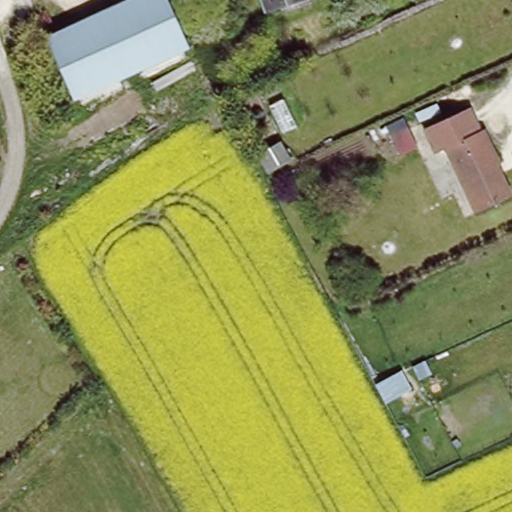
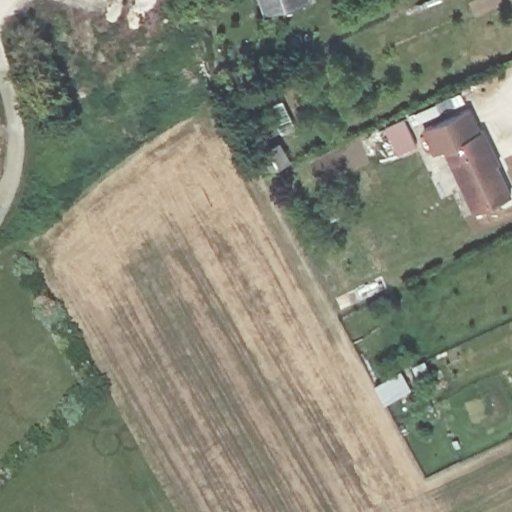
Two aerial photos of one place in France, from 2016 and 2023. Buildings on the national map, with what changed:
demolished [(122,0),(165,0),(189,48),(74,98),(45,33),(122,0)]
unchanged [(263,11),(259,0),(302,0),(263,11)]
unchanged [(462,183),(434,122),(474,101),(500,161),(497,163),(498,166),(462,183)]
unchanged [(294,158),(267,172),(255,153),(282,139),(294,158)]
unchanged [(510,194),(475,211),(462,183),(498,166),(510,194)]
unchanged [(379,382),(404,372),(417,397),(392,407),(379,382)]

